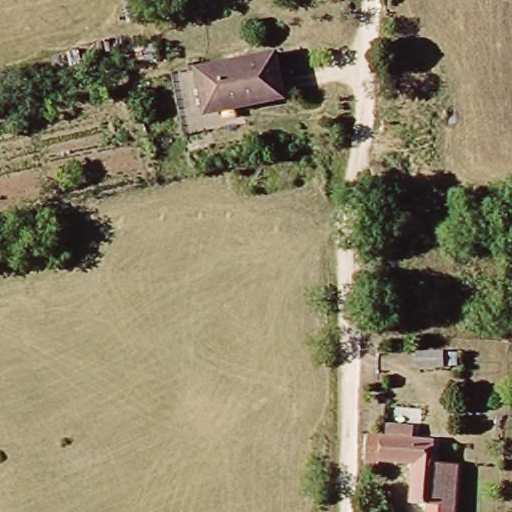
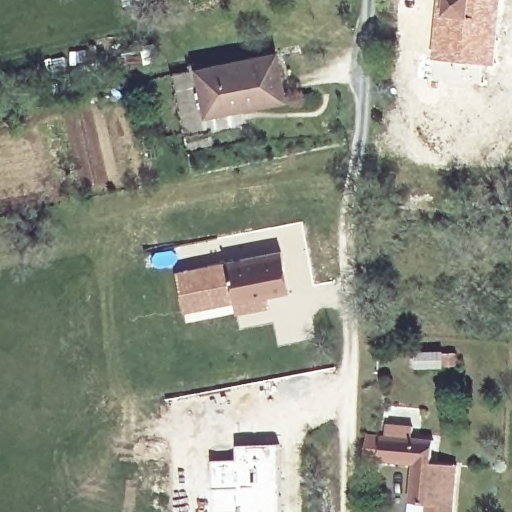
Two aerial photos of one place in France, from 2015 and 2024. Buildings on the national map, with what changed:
new [(504,0),(498,65),(432,59),(437,0),(504,0)]
unchanged [(199,115),(189,65),(275,46),(285,96),(199,115)]
new [(280,252),(285,290),(213,302),(207,264),(280,252)]
new [(207,264),(213,302),(182,307),(176,269),(207,264)]
unchanged [(445,348),(445,365),(408,366),(407,349),(445,348)]
unchanged [(365,429),(385,430),(386,418),(414,421),(414,437),(430,438),(429,461),(455,463),(451,512),(424,512),(426,496),(407,494),(410,457),(364,454),(365,429)]
new [(210,460),(235,459),(235,445),(279,443),(279,512),(209,512),(210,489),(210,460)]

